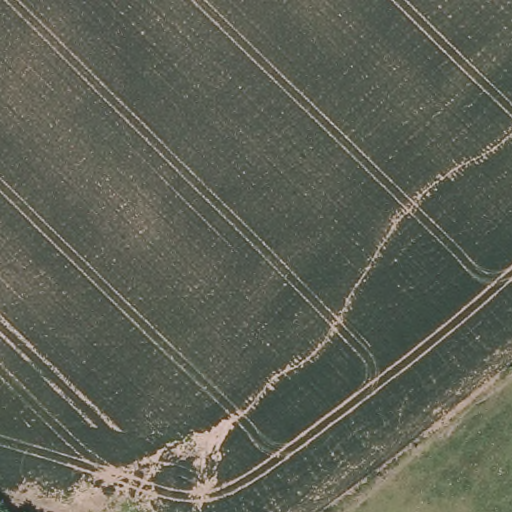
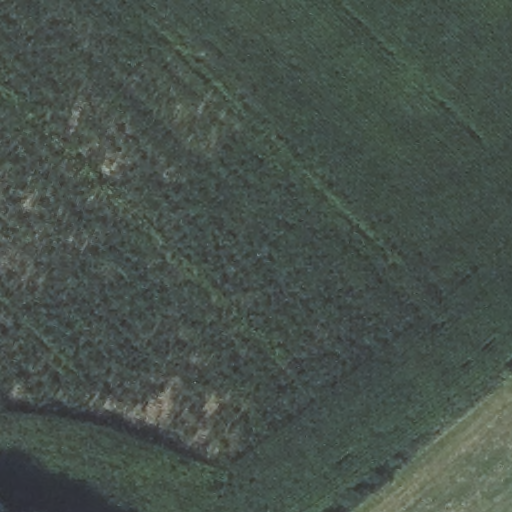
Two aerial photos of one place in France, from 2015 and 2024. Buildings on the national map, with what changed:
[]

